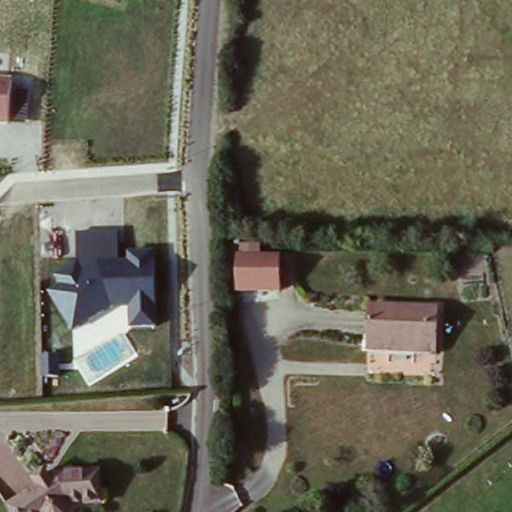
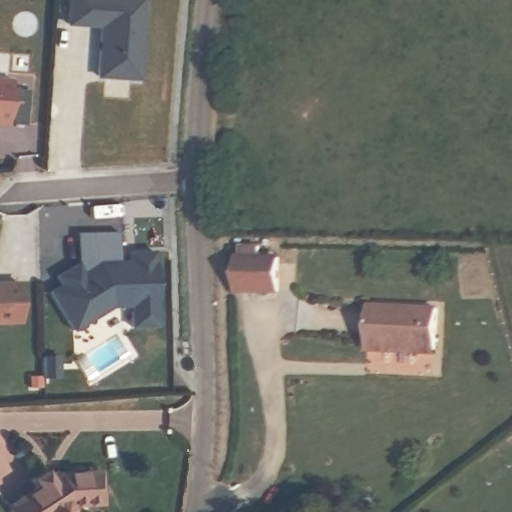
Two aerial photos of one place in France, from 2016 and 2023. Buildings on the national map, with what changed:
new [(67,0),(141,0),(136,77),(96,76),(99,25),(65,22),(67,0)]
unchanged [(0,128),(0,80),(14,82),(9,129),(0,128)]
unchanged [(48,291),(60,284),(54,273),(76,262),(75,233),(118,230),(120,263),(128,262),(129,252),(156,252),(157,327),(129,327),(129,306),(112,307),(73,332),(48,291)]
unchanged [(234,256),(275,256),(274,290),(234,290),(234,256)]
new [(20,321),(0,321),(0,280),(21,280),(20,321)]
unchanged [(371,298),(440,303),(436,349),(366,346),(371,298)]
unchanged [(33,490),(26,481),(41,472),(46,481),(54,476),(96,473),(98,503),(61,506),(64,509),(64,512),(7,512),(4,508),(33,490)]

